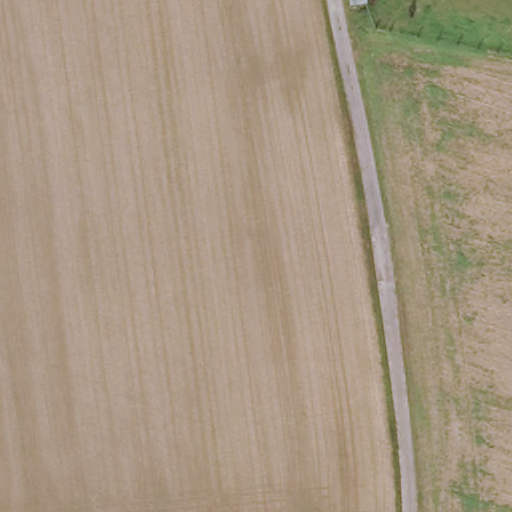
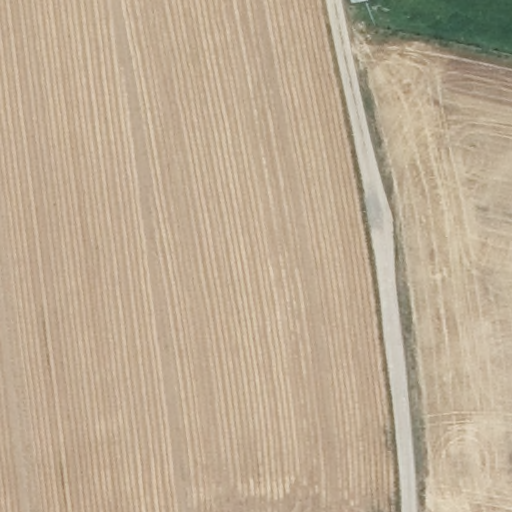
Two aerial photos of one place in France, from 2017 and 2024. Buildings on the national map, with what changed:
unchanged [(348,0),(370,0),(370,1),(348,3),(348,0)]

